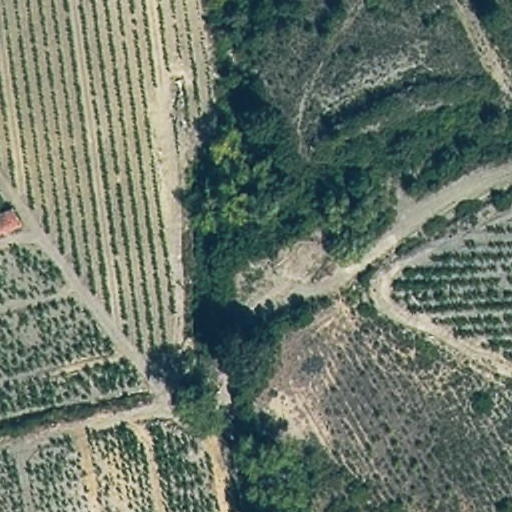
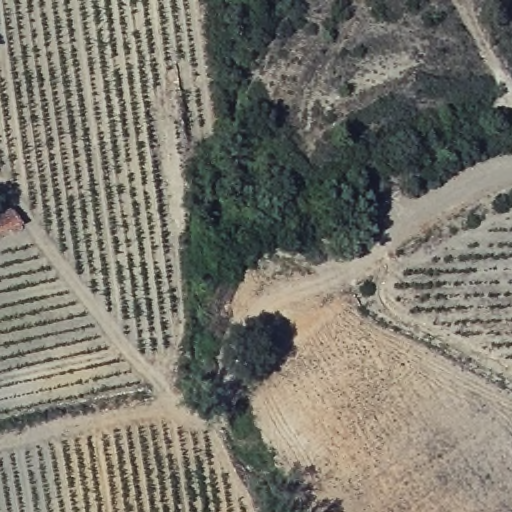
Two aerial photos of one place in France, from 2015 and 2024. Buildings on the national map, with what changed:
unchanged [(15,201),(25,225),(0,230),(0,204),(15,201)]

